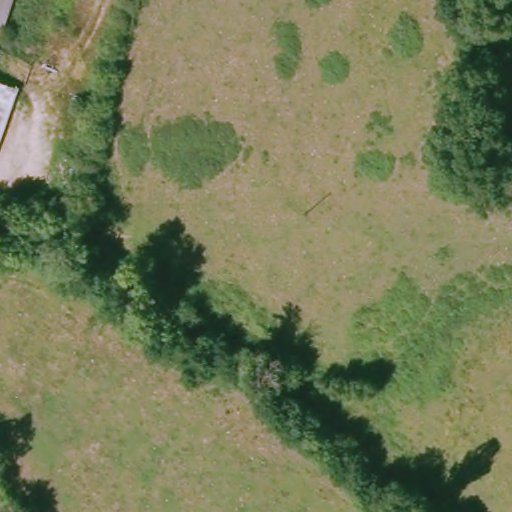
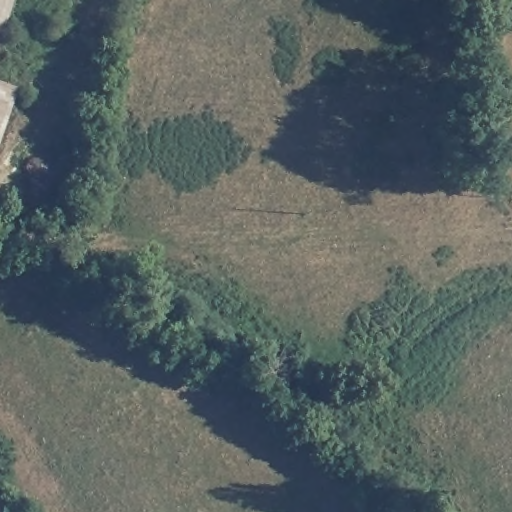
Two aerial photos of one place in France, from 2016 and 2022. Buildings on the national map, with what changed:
unchanged [(0,20),(0,0),(6,0),(0,20)]

